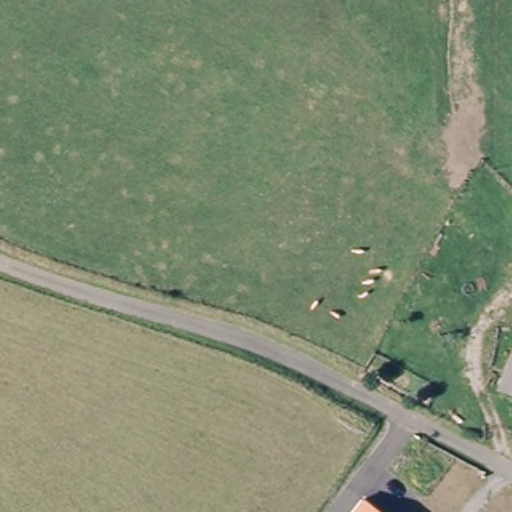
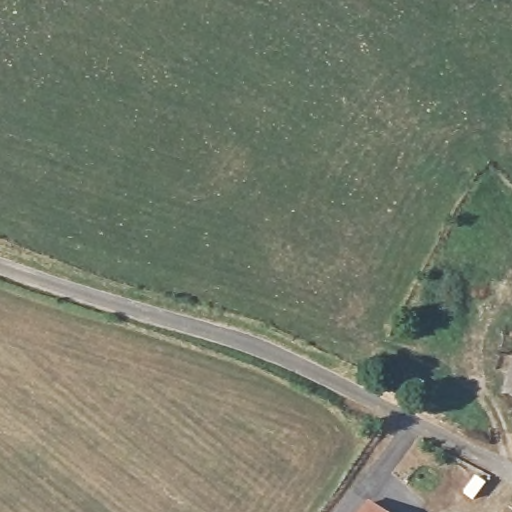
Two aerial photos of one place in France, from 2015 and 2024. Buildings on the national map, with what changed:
unchanged [(512,392),(512,400),(509,400),(511,397),(512,392)]
unchanged [(369,512),(357,512),(361,506),(369,512)]

